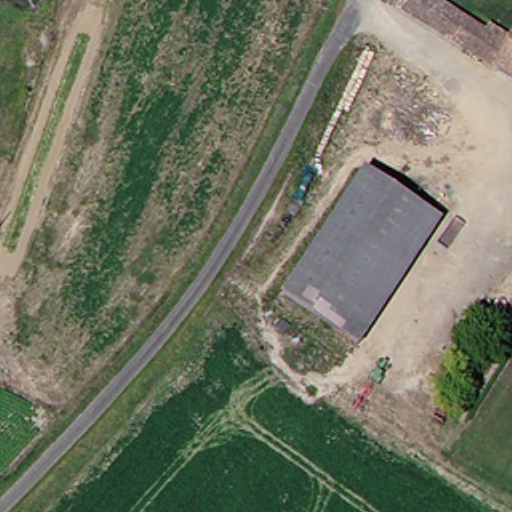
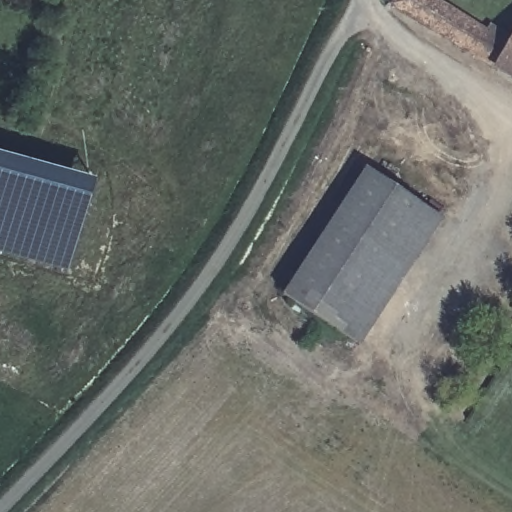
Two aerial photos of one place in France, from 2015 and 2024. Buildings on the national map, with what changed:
unchanged [(504,41),(489,66),(382,3),(384,0),(436,0),(504,41)]
unchanged [(512,28),(512,79),(489,66),(504,41),(512,28)]
new [(0,145),(86,167),(64,254),(0,237),(0,145)]
unchanged [(430,212),(353,344),(277,299),(355,168),(430,212)]

